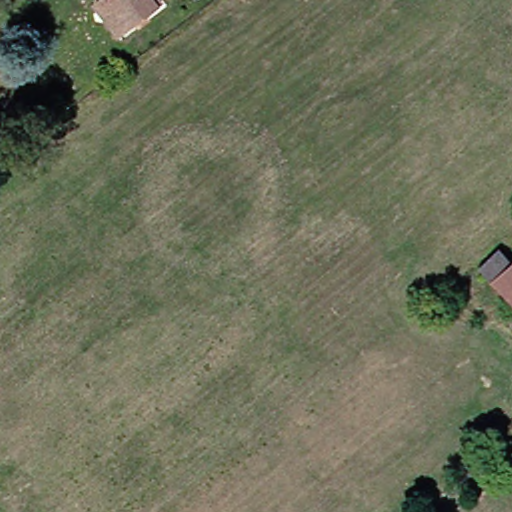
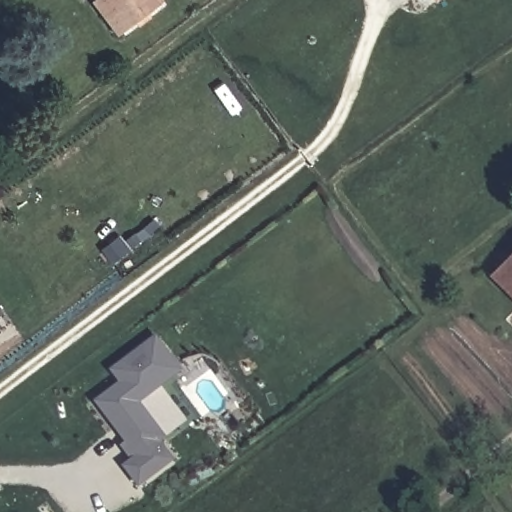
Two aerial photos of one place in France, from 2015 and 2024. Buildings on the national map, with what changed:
unchanged [(85,2),(89,0),(147,0),(152,7),(120,31),(111,37),(85,2)]
new [(436,3),(434,0),(441,0),(436,3)]
unchanged [(476,277),(497,257),(510,270),(512,268),(512,313),(476,277)]
new [(0,315),(0,307),(4,312),(0,315)]
new [(95,401),(120,382),(111,370),(155,337),(180,370),(136,401),(163,437),(158,441),(171,459),(137,484),(124,465),(131,459),(121,445),(126,442),(95,401)]

